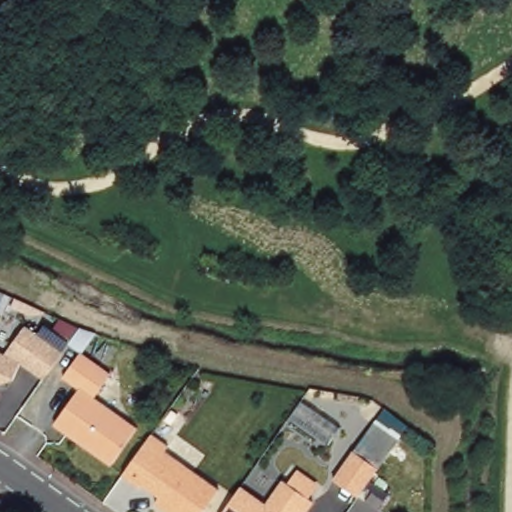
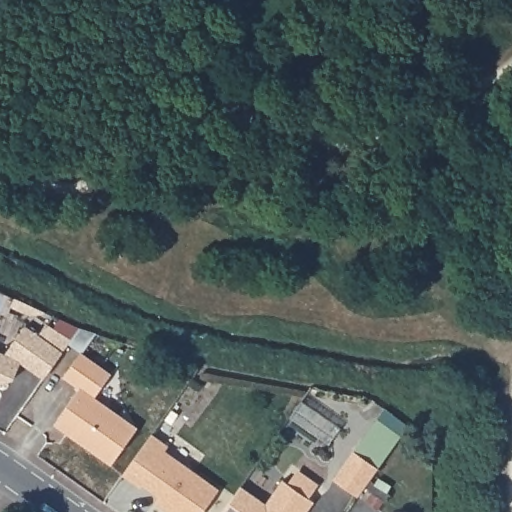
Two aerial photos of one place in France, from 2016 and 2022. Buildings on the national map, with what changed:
unchanged [(5,354),(25,325),(62,352),(43,379),(20,362),(12,379),(0,383),(0,352),(5,354)]
unchanged [(110,374),(94,397),(137,428),(111,464),(66,433),(65,424),(57,419),(79,388),(62,377),(80,352),(110,374)]
unchanged [(365,487),(358,496),(334,479),(350,457),(354,451),(375,424),(398,443),(378,468),(372,476),(365,487)]
unchanged [(159,501),(141,489),(139,492),(122,479),(147,442),(150,438),(151,439),(167,451),(164,456),(219,493),(205,512),(162,512),(155,507),(159,501)]
unchanged [(229,506),(240,491),(265,508),(282,484),(310,504),(312,506),(308,512),(225,512),(229,506)]

